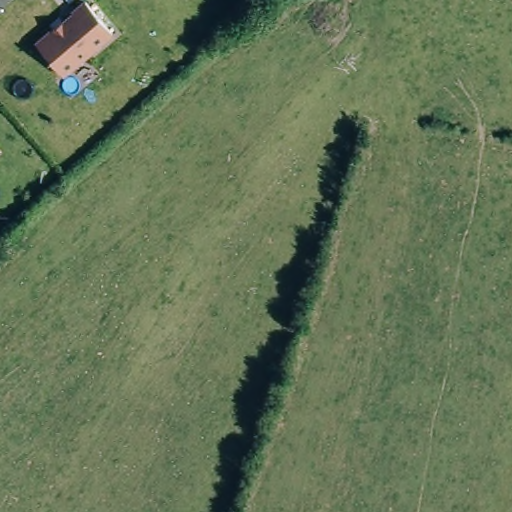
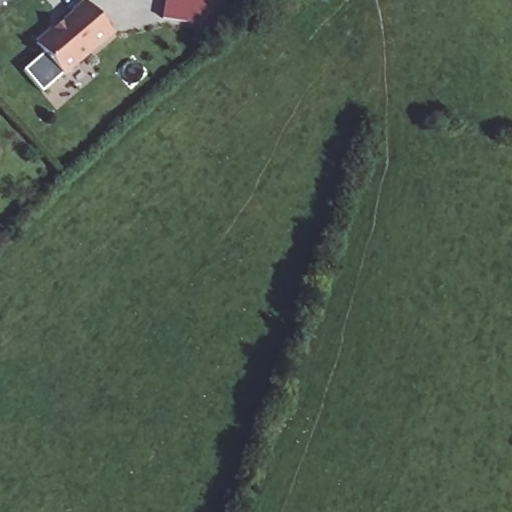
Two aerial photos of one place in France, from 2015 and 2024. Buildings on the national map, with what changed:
new [(160,17),(164,0),(218,0),(212,28),(160,17)]
unchanged [(53,31),(55,33),(74,16),(72,15),(86,3),(113,35),(63,77),(37,45),(53,31)]

